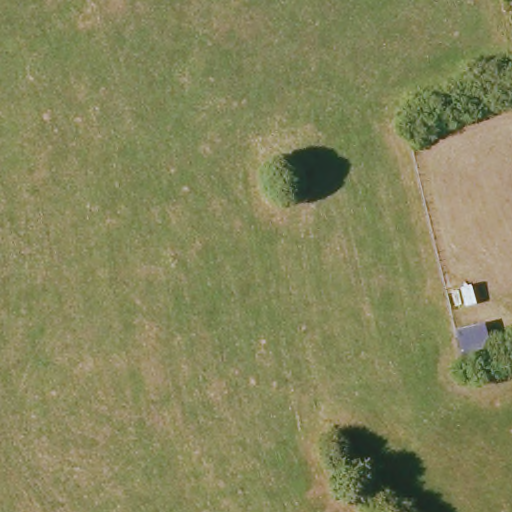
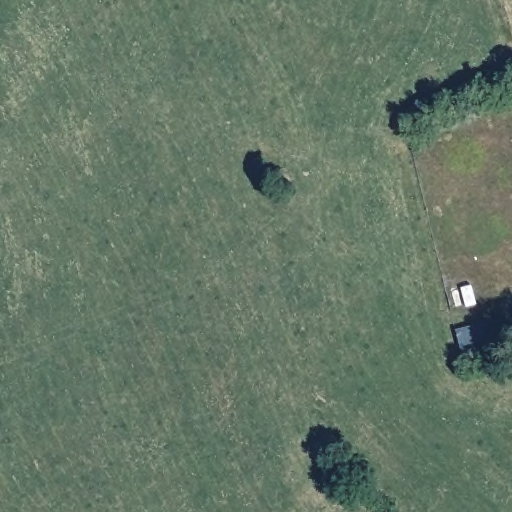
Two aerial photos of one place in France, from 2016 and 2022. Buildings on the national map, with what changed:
unchanged [(483,324),(492,358),(463,368),(457,333),(483,324)]

